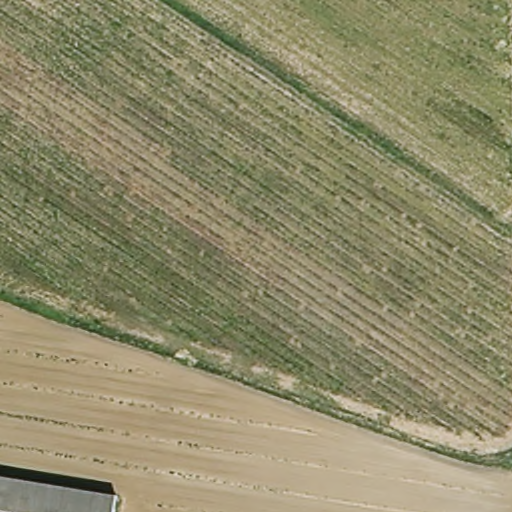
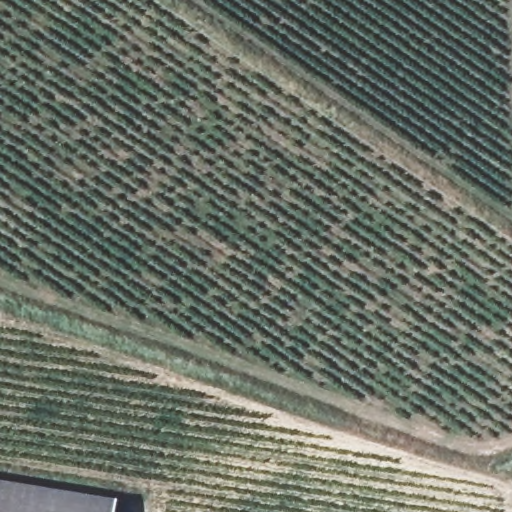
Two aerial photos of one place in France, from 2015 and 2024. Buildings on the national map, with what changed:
unchanged [(121,502),(119,512),(0,512),(0,484),(121,502)]

